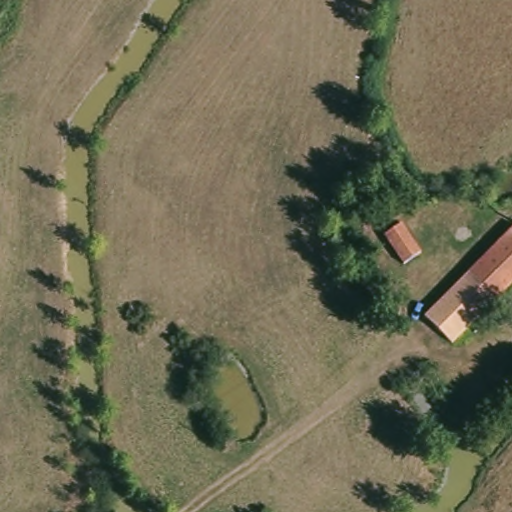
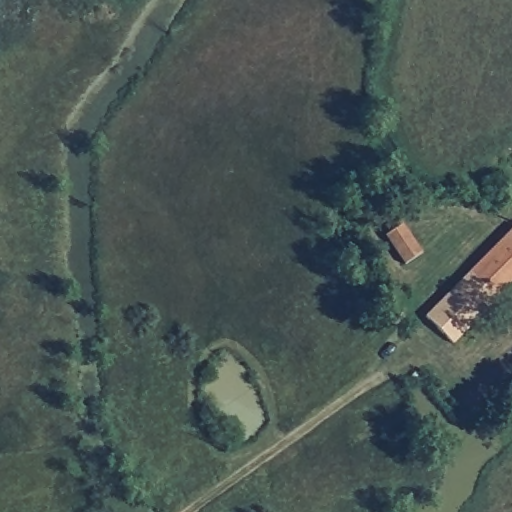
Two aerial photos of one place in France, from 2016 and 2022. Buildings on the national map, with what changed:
unchanged [(512,278),(450,351),(421,326),(502,227),(512,236),(512,278)]
unchanged [(428,256),(410,270),(390,244),(408,230),(428,256)]

